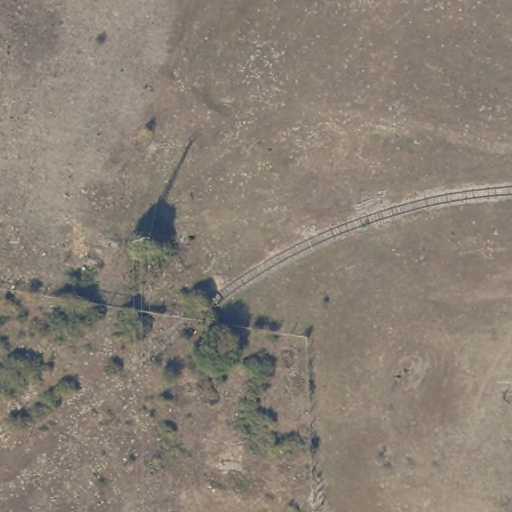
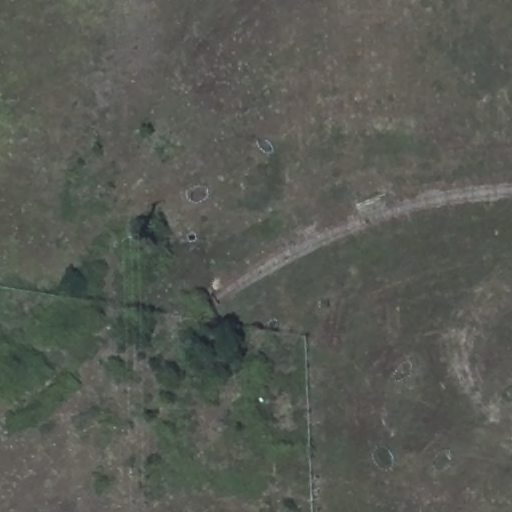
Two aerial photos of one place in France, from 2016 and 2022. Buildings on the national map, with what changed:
[]

